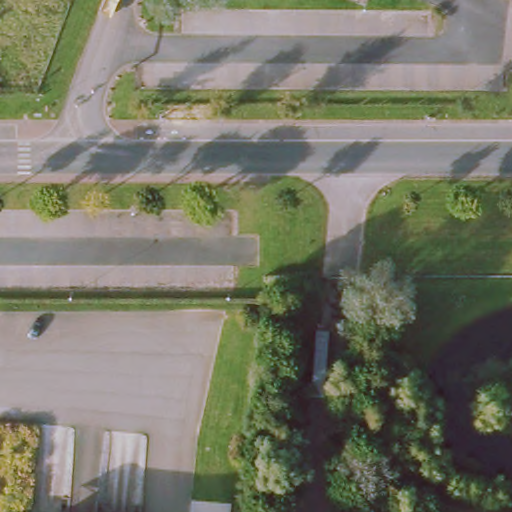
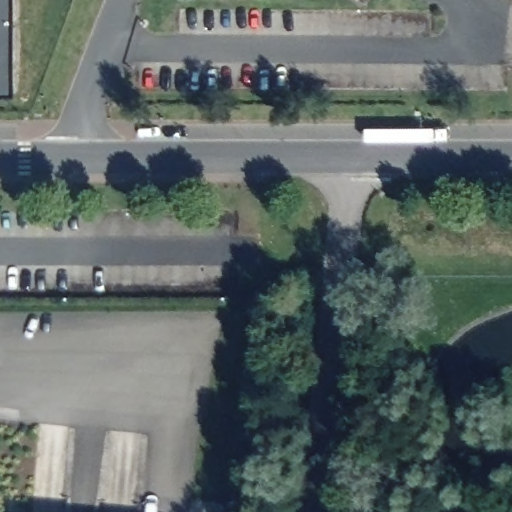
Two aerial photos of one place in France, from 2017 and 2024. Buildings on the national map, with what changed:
new [(10,99),(0,99),(0,0),(9,0),(10,99)]

